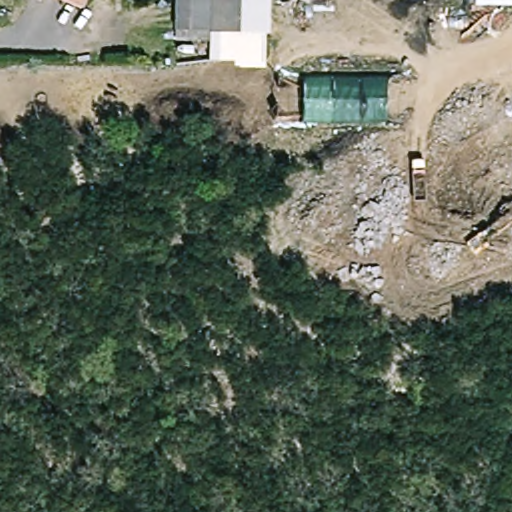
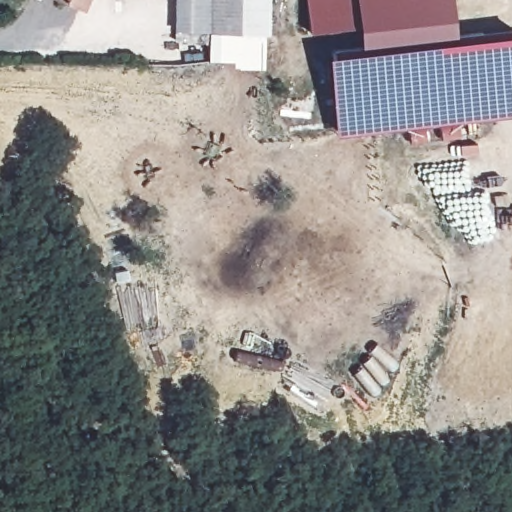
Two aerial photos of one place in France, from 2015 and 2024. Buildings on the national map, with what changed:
unchanged [(72,0),(82,0),(80,4),(72,0)]
unchanged [(265,35),(265,69),(234,69),(233,62),(208,61),(208,42),(174,39),(175,0),(270,0),(269,35),(265,35)]
new [(311,32),(306,0),(355,0),(358,26),(311,32)]
new [(329,49),(360,46),(356,0),(452,0),(455,33),(512,26),(512,116),(336,137),(329,57),(329,49)]
demolished [(512,0),(512,13),(474,14),(475,0),(512,0)]

